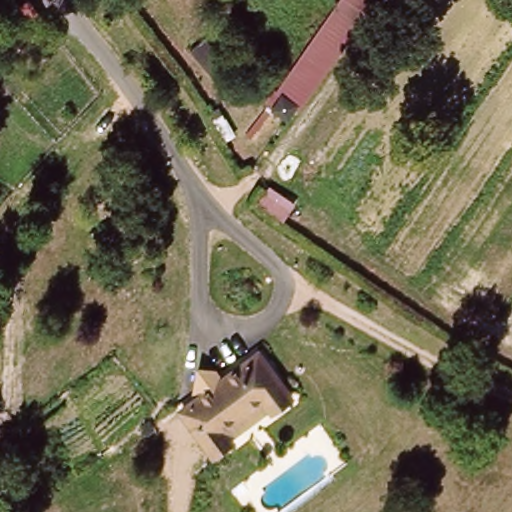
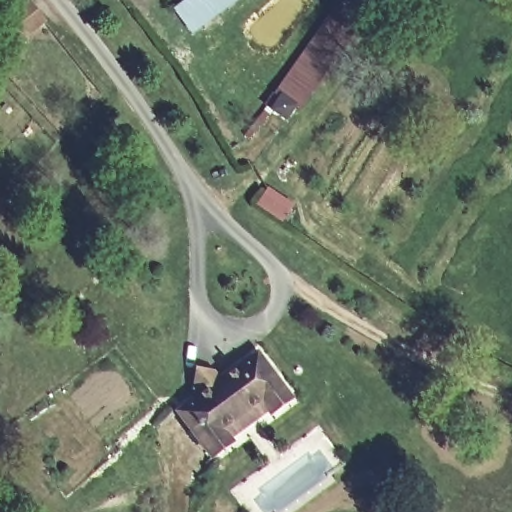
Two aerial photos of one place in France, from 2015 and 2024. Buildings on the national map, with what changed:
new [(192,34),(174,9),(186,0),(240,0),(192,34)]
unchanged [(375,6),(305,104),(285,87),(346,0),(379,0),(375,6)]
unchanged [(234,448),(220,457),(185,410),(265,353),(296,397),(275,413),(273,410),(230,442),(234,448)]

